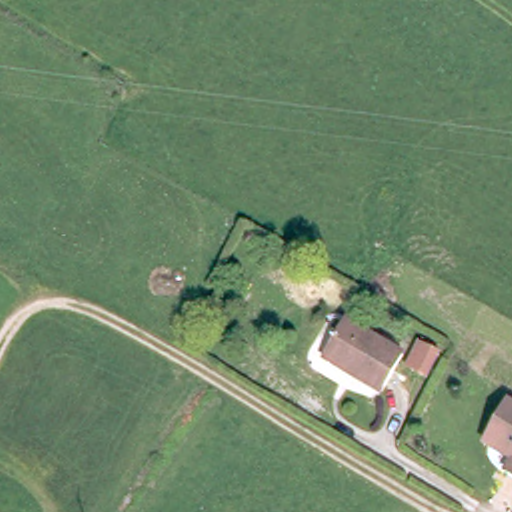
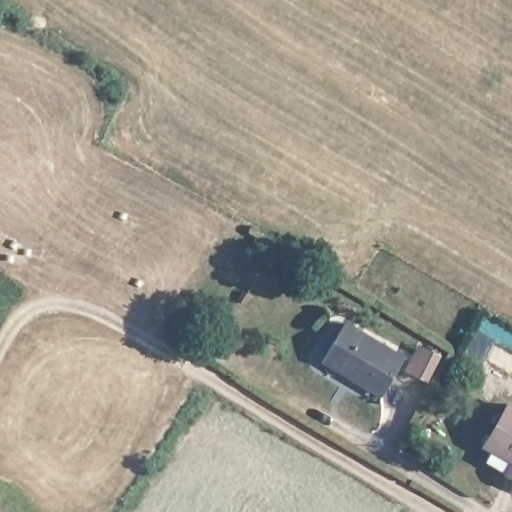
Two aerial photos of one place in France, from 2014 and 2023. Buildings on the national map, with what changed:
unchanged [(352,380),(328,366),(350,328),(408,362),(389,396),(387,400),(352,380)]
unchanged [(432,383),(417,376),(412,373),(422,350),(427,352),(443,360),(432,383)]
unchanged [(491,445),(495,438),(512,411),(512,457),(491,445)]
unchanged [(510,475),(512,472),(512,475),(510,475)]

